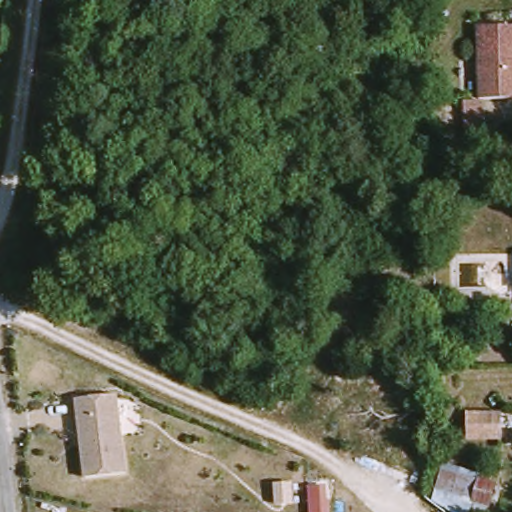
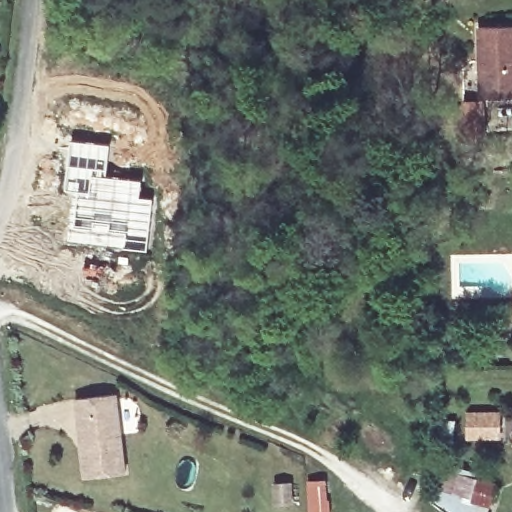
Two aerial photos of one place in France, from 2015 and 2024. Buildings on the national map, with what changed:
unchanged [(494,22),(512,23),(512,94),(493,94),(494,22)]
new [(71,139),(110,144),(106,176),(143,180),(141,195),(155,197),(148,252),(65,242),(71,192),(64,192),(71,139)]
unchanged [(463,177),(463,196),(453,196),(452,177),(463,177)]
unchanged [(461,235),(466,243),(452,250),(448,242),(461,235)]
unchanged [(74,398),(114,394),(123,472),(83,476),(80,444),(78,432),(74,398)]
unchanged [(506,408),(504,440),(466,439),(467,409),(506,408)]
unchanged [(491,512),(432,512),(427,510),(441,465),(499,482),(491,512)]
new [(327,484),(328,499),(330,499),(330,511),(321,512),(311,512),(311,500),(310,485),(327,484)]

